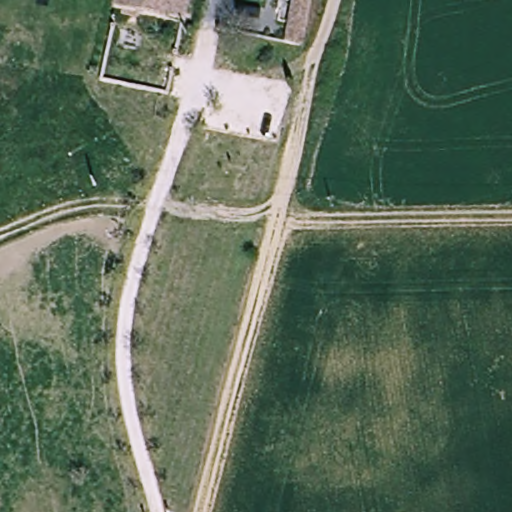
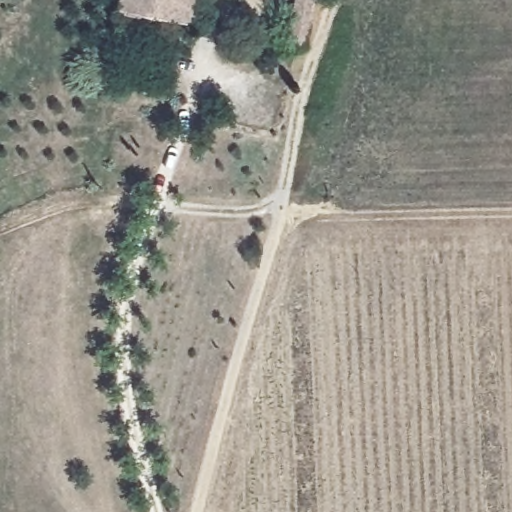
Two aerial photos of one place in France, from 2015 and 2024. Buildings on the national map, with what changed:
unchanged [(199,20),(119,7),(120,0),(202,0),(199,20)]
unchanged [(310,40),(287,35),(294,0),(317,0),(310,40)]

